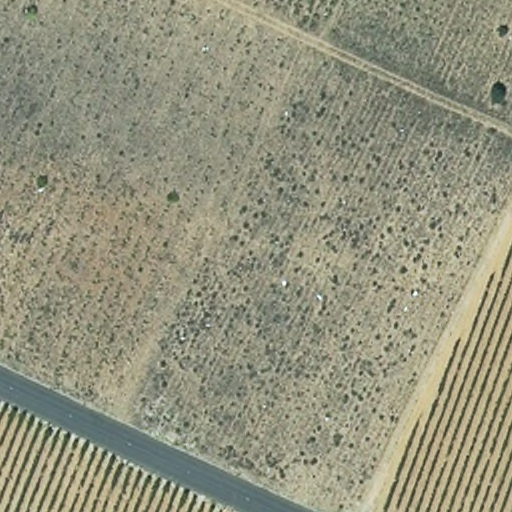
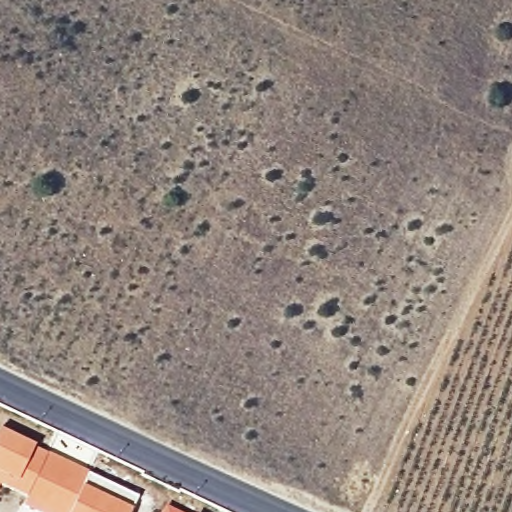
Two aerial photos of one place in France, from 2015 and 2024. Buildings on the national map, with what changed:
new [(47,454),(25,498),(0,486),(0,433),(47,454)]
new [(47,454),(87,474),(69,512),(34,512),(21,505),(25,498),(47,454)]
new [(137,498),(130,512),(69,512),(87,474),(137,498)]
new [(172,512),(161,512),(163,507),(172,512)]

